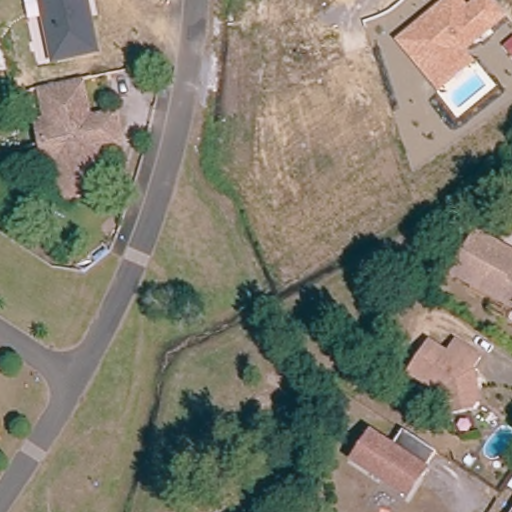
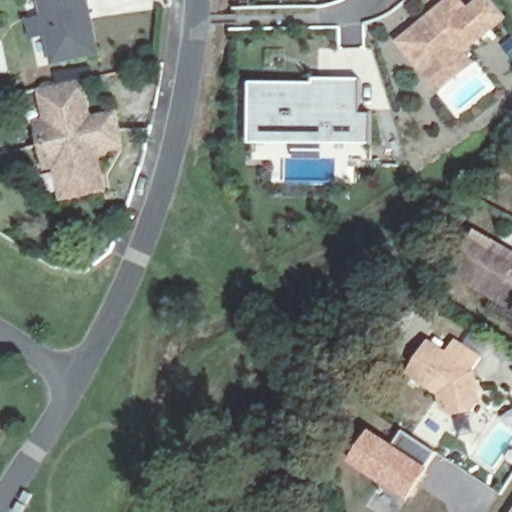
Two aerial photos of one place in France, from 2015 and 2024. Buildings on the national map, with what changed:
unchanged [(30,22),(26,2),(33,0),(89,0),(101,55),(53,65),(44,17),(30,22)]
unchanged [(462,0),(469,7),(478,0),(492,0),(509,20),(468,54),(477,64),(439,95),(396,44),(448,0),(462,0)]
new [(315,87),(315,80),(361,80),(362,115),(373,115),(373,144),(252,142),(253,83),(315,87)]
unchanged [(81,82),(82,82),(90,118),(95,121),(116,117),(119,131),(44,147),(39,125),(50,123),(43,90),(81,82)]
unchanged [(119,131),(122,145),(101,150),(97,155),(105,191),(65,199),(59,166),(48,168),(44,147),(119,131)]
unchanged [(488,308),(495,295),(454,272),(476,232),(512,253),(512,322),(488,308)]
unchanged [(482,401),(475,412),(456,417),(445,410),(442,397),(411,377),(431,345),(450,357),(458,344),(483,360),(475,373),(477,382),(480,392),(482,401)]
unchanged [(435,460),(407,504),(353,469),(370,443),(390,455),(401,438),(435,460)]

